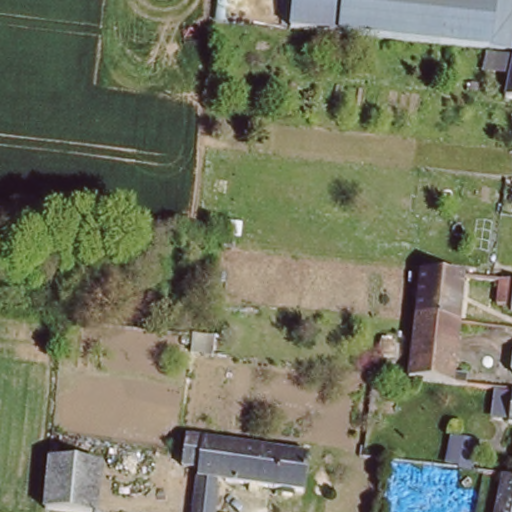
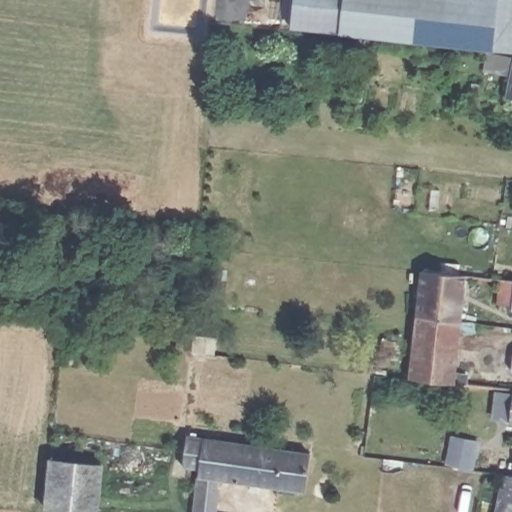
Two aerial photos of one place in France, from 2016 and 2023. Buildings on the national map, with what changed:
unchanged [(289,0),(339,0),(335,36),(286,31),(289,0)]
unchanged [(339,0),(439,0),(435,46),(335,36),(339,0)]
unchanged [(439,0),(490,0),(485,50),(435,46),(439,0)]
unchanged [(490,0),(512,0),(512,53),(485,50),(490,0)]
unchanged [(511,58),(512,53),(512,102),(505,101),(511,58)]
unchanged [(414,312),(419,274),(461,279),(456,317),(414,312)]
unchanged [(491,283),(508,285),(510,274),(512,274),(512,304),(505,303),(506,299),(489,297),(491,283)]
unchanged [(406,373),(414,312),(456,317),(448,376),(406,373)]
unchanged [(505,370),(506,354),(512,350),(512,373),(505,370)]
unchanged [(507,424),(510,391),(512,391),(512,424),(507,424)]
unchanged [(447,433),(476,437),(473,469),(453,467),(443,466),(447,433)]
unchanged [(511,434),(512,434),(512,478),(507,478),(511,434)]
unchanged [(198,455),(184,453),(186,435),(201,436),(283,444),(278,483),(219,477),(214,512),(191,512),(198,455)]
unchanged [(278,483),(283,444),(311,446),(307,486),(278,483)]
unchanged [(50,462),(96,466),(91,512),(46,512),(50,462)]
unchanged [(507,478),(512,478),(512,512),(500,512),(507,478)]

